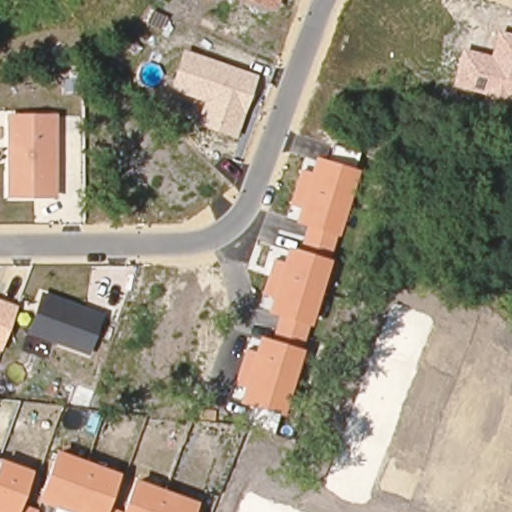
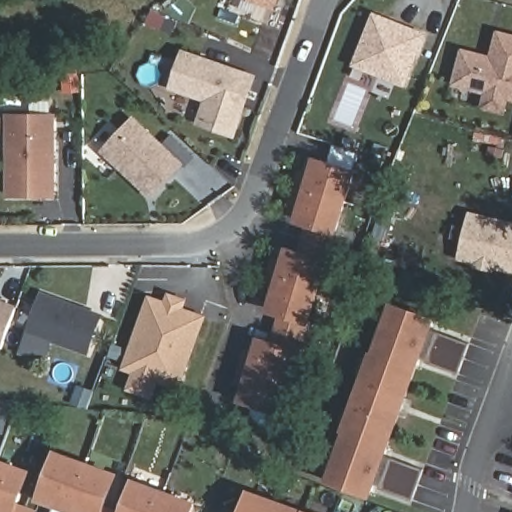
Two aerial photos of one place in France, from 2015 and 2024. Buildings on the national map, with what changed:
unchanged [(276,10),(246,0),(279,0),(276,10)]
new [(350,66),(373,11),(428,34),(406,87),(350,66)]
unchanged [(491,55),(497,30),(512,34),(512,102),(450,87),(461,48),(491,55)]
unchanged [(257,75),(237,138),(195,126),(202,101),(169,91),(182,50),(257,75)]
unchanged [(56,198),(6,198),(5,115),(57,113),(56,198)]
new [(152,199),(101,151),(133,115),(185,163),(152,199)]
unchanged [(242,386),(233,385),(245,347),(254,350),(257,336),(268,339),(276,316),(266,313),(271,297),(262,295),(272,258),(281,260),(285,247),(297,250),(304,226),(293,222),(298,206),(289,204),(299,169),(308,170),(312,156),(325,160),(333,144),(360,151),(353,167),(360,170),(339,237),(335,235),(327,259),(332,260),(312,327),(307,326),(300,348),(305,350),(285,417),(277,414),(274,432),(250,425),(251,406),(237,402),(242,386)]
new [(512,222),(512,268),(462,255),(473,212),(512,222)]
unchanged [(104,312),(89,355),(25,333),(42,292),(104,312)]
new [(150,297),(204,317),(176,387),(124,367),(150,297)]
unchanged [(17,306),(1,351),(0,351),(0,299),(17,306)]
new [(433,331),(422,361),(387,457),(375,488),(371,500),(325,483),(391,302),(437,318),(433,331)]
new [(457,375),(422,361),(433,331),(469,344),(457,375)]
unchanged [(52,512),(54,507),(36,501),(54,449),(120,472),(109,506),(124,511),(135,478),(199,502),(195,512),(52,512)]
new [(411,501),(375,488),(387,457),(423,470),(411,501)]
unchanged [(38,509),(37,512),(0,512),(0,459),(33,470),(21,503),(38,509)]
new [(239,512),(248,488),(313,512),(239,512)]

